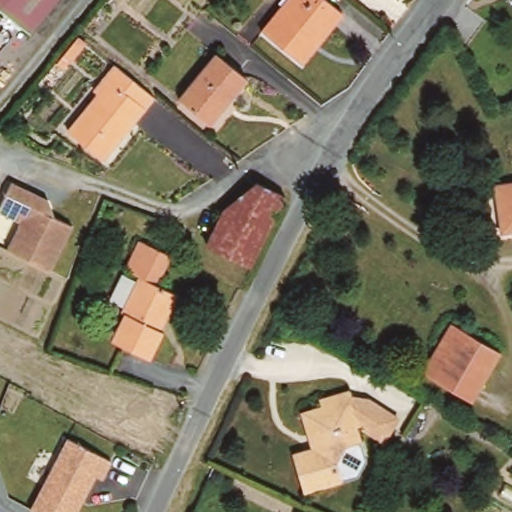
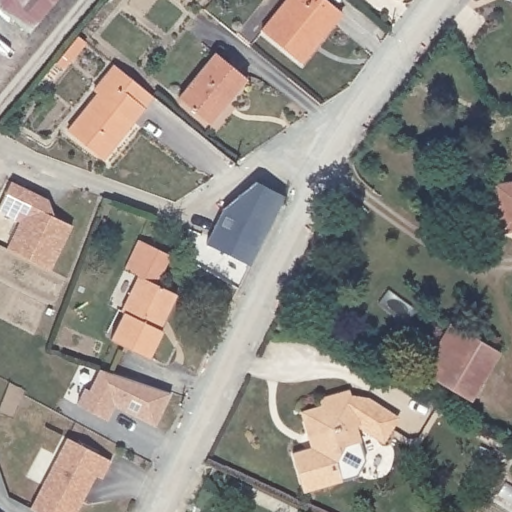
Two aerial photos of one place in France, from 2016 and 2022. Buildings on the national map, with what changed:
unchanged [(37,30),(0,2),(0,0),(60,0),(37,30)]
unchanged [(344,10),(306,60),(263,28),(284,0),(330,0),(344,10)]
unchanged [(82,42),(66,64),(58,57),(74,36),(82,42)]
unchanged [(252,79),(217,126),(184,100),(220,55),(252,79)]
unchanged [(94,95),(115,69),(154,99),(107,161),(72,137),(99,99),(94,95)]
unchanged [(17,215),(0,207),(0,195),(11,178),(45,195),(51,214),(70,224),(46,268),(1,245),(17,215)]
unchanged [(492,186),(512,183),(512,233),(501,235),(492,186)]
unchanged [(254,185),(284,199),(250,267),(207,247),(231,201),(254,185)]
unchanged [(129,267),(142,240),(173,256),(160,282),(179,291),(165,330),(169,331),(155,361),(115,341),(130,308),(124,305),(140,273),(129,267)]
unchanged [(423,375),(443,340),(451,325),(500,352),(492,367),(473,402),(423,375)]
new [(105,420),(75,404),(84,388),(88,391),(99,371),(170,395),(153,427),(123,411),(113,405),(105,420)]
unchanged [(323,409),(321,400),(351,391),(353,398),(361,426),(356,427),(357,430),(360,442),(345,446),(338,460),(343,482),(302,493),(293,455),(312,449),(303,415),(323,409)]
unchanged [(373,400),(399,420),(386,444),(357,430),(356,427),(361,426),(353,398),(373,400)]
unchanged [(107,469),(103,478),(96,475),(77,512),(36,512),(31,510),(39,495),(64,446),(68,438),(112,461),(107,469)]

